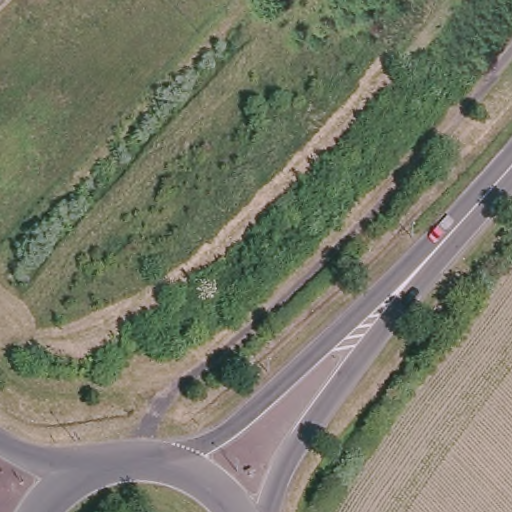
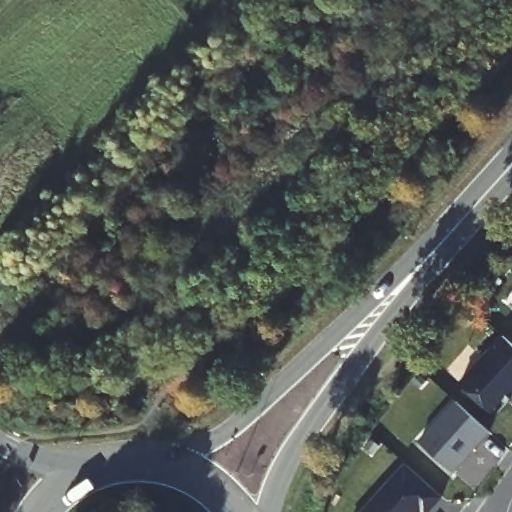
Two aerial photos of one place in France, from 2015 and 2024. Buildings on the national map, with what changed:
new [(490,412),(460,384),(503,336),(512,344),(512,396),(507,402),(503,397),(508,392),(490,412)]
new [(455,472),(421,442),(457,401),(491,431),(455,472)]
new [(423,512),(422,511),(421,512),(361,512),(406,463),(442,496),(427,512),(423,512)]

